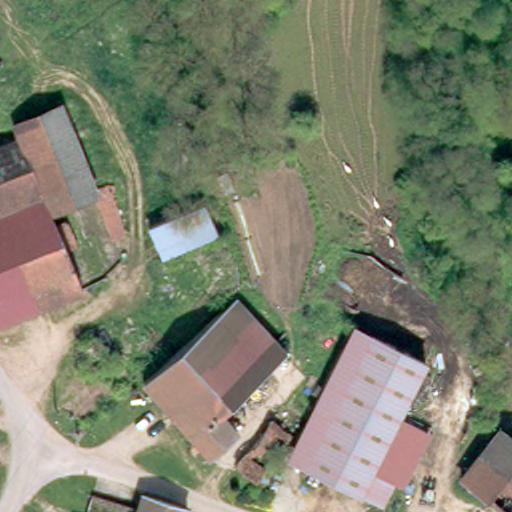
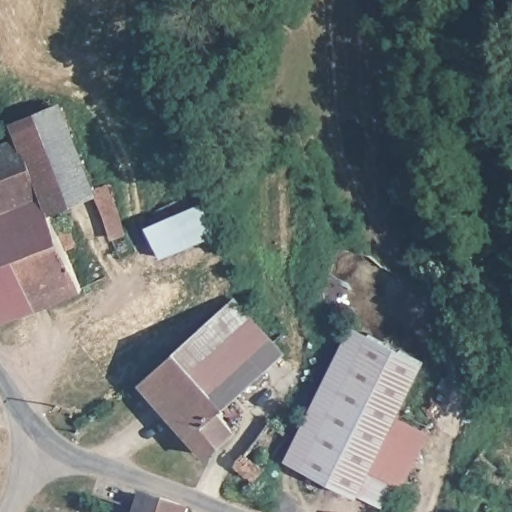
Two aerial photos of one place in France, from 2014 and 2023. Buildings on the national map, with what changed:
unchanged [(25,118),(37,114),(72,104),(97,179),(50,194),(35,150),(25,118)]
unchanged [(35,150),(50,194),(82,287),(0,316),(0,160),(35,150)]
unchanged [(159,255),(150,219),(215,205),(223,240),(220,241),(190,248),(159,255)]
unchanged [(207,419),(225,439),(203,459),(134,386),(209,316),(223,303),(270,361),(207,419)]
unchanged [(286,464),(353,323),(432,362),(400,420),(430,437),(402,483),(371,472),(362,494),(286,464)]
unchanged [(283,449),(250,484),(231,467),(265,432),(283,449)]
demolished [(507,439),(512,444),(512,482),(490,459),(507,439)]
demolished [(490,459),(512,482),(512,512),(500,512),(471,484),(490,459)]
unchanged [(133,495),(176,504),(178,505),(177,512),(129,512),(130,509),(133,495)]
unchanged [(79,512),(82,500),(98,503),(130,509),(129,512),(79,512)]

